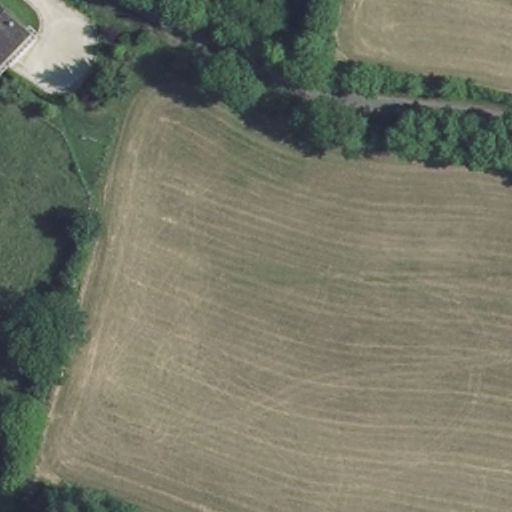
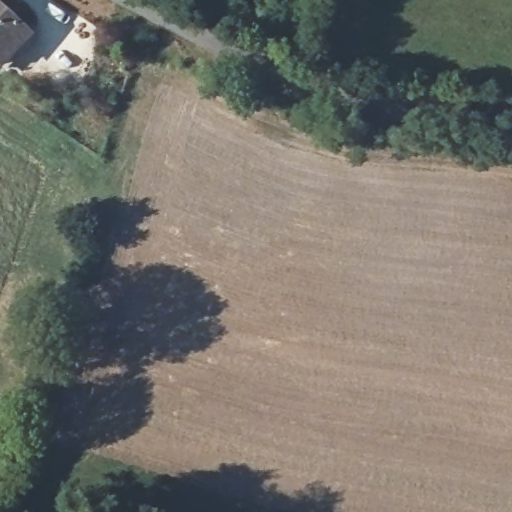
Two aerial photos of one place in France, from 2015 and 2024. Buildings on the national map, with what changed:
unchanged [(37,34),(8,67),(0,60),(0,1),(37,34)]

